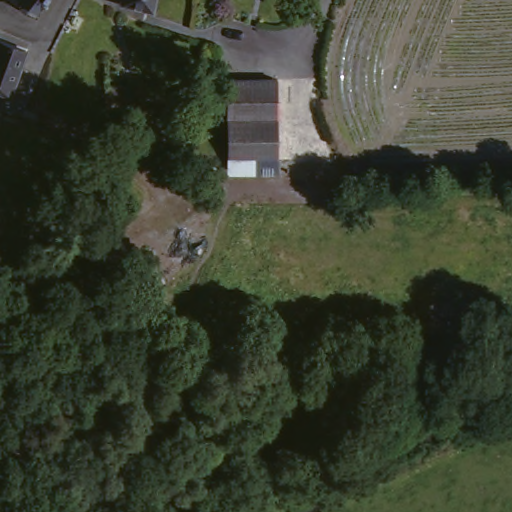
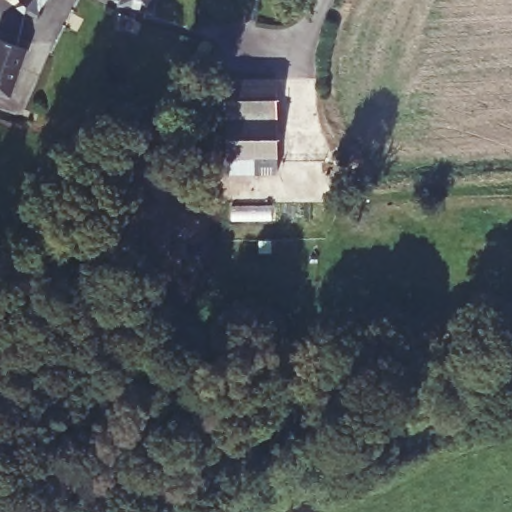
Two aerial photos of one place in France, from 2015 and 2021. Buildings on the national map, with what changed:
unchanged [(43,7),(32,0),(48,0),(43,7)]
unchanged [(20,36),(12,84),(11,89),(0,87),(0,33),(20,36)]
unchanged [(280,156),(227,157),(227,81),(280,79),(280,156)]
unchanged [(121,81),(120,111),(117,110),(102,109),(97,81),(121,81)]

